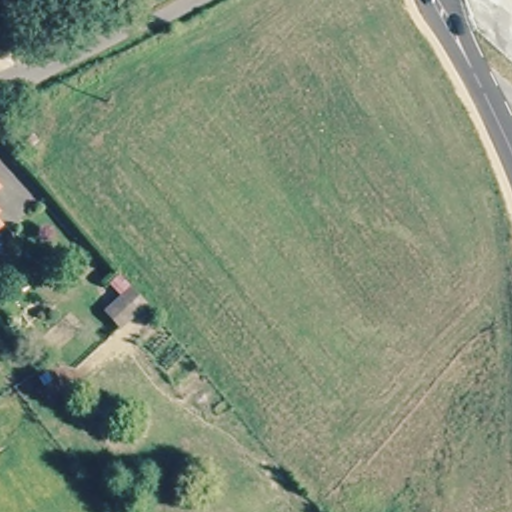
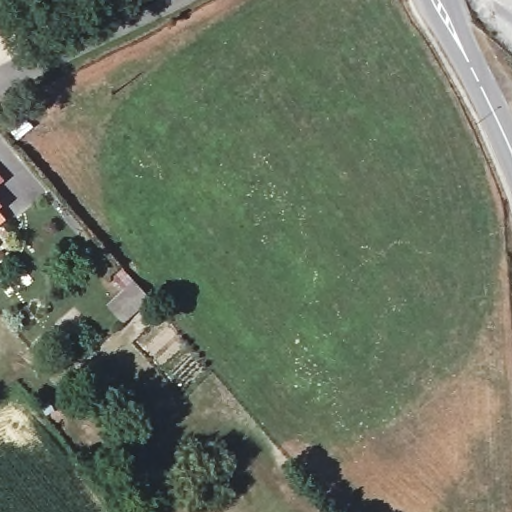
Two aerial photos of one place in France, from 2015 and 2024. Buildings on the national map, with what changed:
unchanged [(5,186),(0,190),(0,179),(5,186)]
unchanged [(3,231),(0,233),(0,226),(3,231)]
unchanged [(121,270),(152,302),(126,326),(108,308),(120,295),(108,285),(121,270)]

